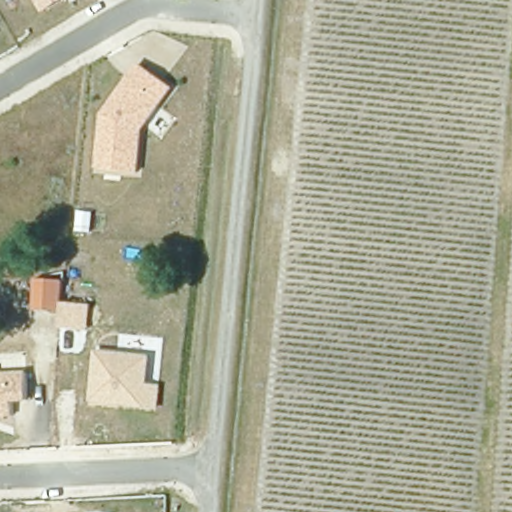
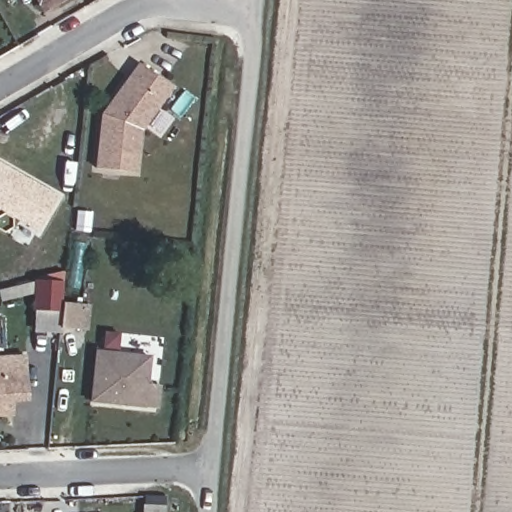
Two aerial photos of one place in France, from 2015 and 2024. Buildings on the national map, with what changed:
unchanged [(42,12),(36,0),(64,0),(42,12)]
unchanged [(102,114),(141,64),(174,87),(144,132),(139,172),(99,169),(102,114)]
new [(34,227),(0,208),(0,166),(52,195),(34,227)]
unchanged [(91,329),(61,326),(61,311),(35,310),(37,274),(66,275),(65,302),(92,304),(91,329)]
unchanged [(96,349),(152,353),(149,384),(161,385),(159,410),(90,405),(96,349)]
unchanged [(10,404),(12,418),(0,418),(0,372),(27,370),(28,403),(10,404)]

